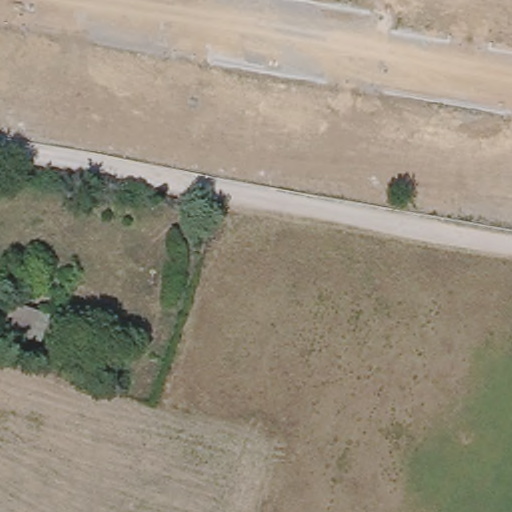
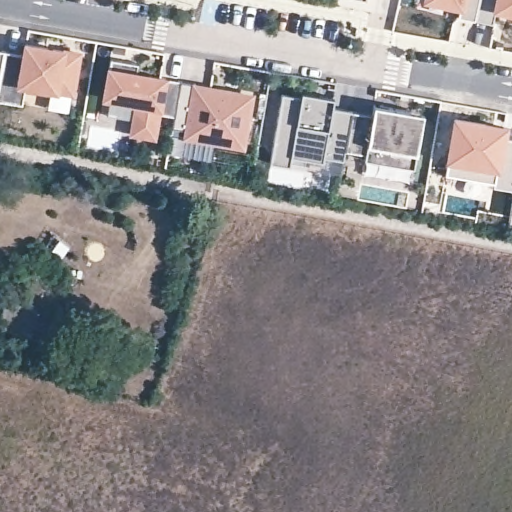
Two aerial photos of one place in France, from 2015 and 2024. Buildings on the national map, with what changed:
new [(454,14),(456,3),(443,0),(474,0),(470,17),(454,14)]
new [(512,0),(512,10),(491,5),(487,21),(470,17),(474,0),(512,0)]
new [(21,54),(23,41),(65,49),(82,53),(75,96),(57,93),(25,88),(22,104),(0,100),(0,66),(2,51),(21,54)]
new [(105,54),(133,59),(132,69),(176,76),(169,111),(153,109),(149,133),(127,129),(133,99),(98,93),(105,54)]
new [(169,111),(176,76),(193,80),(192,82),(247,92),(238,143),(182,132),(183,126),(167,124),(169,111)]
new [(296,89),(313,92),(313,96),(295,94),(296,89)]
new [(277,90),(313,96),(313,91),(329,95),(327,105),(347,108),(338,157),(318,154),(318,159),(286,153),(284,163),(264,159),(277,90)]
new [(367,111),(369,101),(382,104),(405,108),(403,118),(416,120),(408,165),(359,156),(360,151),(340,147),(347,108),(381,114),(367,111)]
new [(503,136),(512,137),(512,168),(508,187),(512,188),(512,190),(494,186),(495,181),(446,174),(456,119),(504,126),(503,136)]
new [(512,168),(512,188),(508,187),(512,168)]
unchanged [(13,329),(20,309),(28,312),(32,308),(51,315),(42,340),(13,329)]

